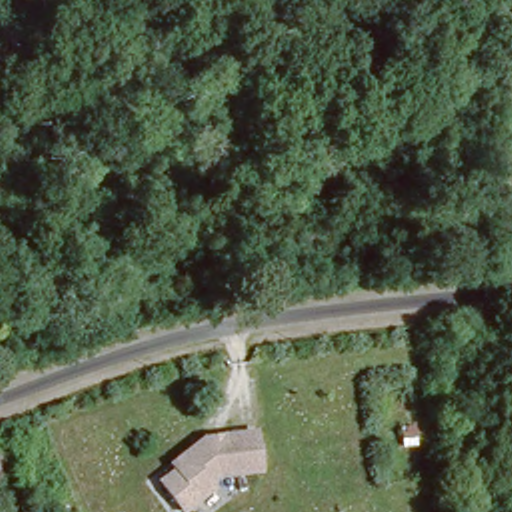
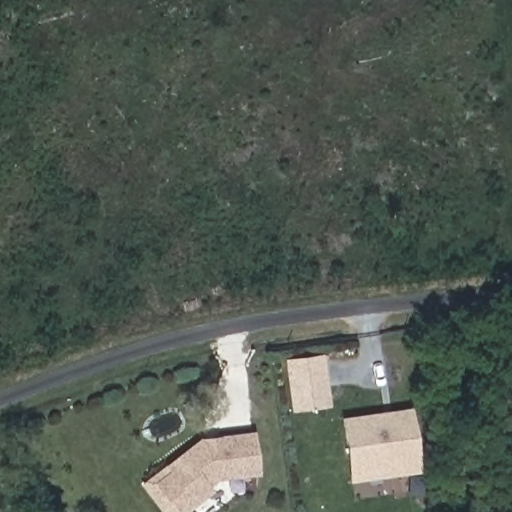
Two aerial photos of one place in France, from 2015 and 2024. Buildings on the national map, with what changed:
new [(323,359),(329,406),(297,410),(290,363),(323,359)]
new [(411,406),(417,473),(348,482),(340,416),(411,406)]
unchanged [(166,458),(202,436),(254,436),(254,475),(212,475),(201,482),(204,487),(171,507),(152,475),(170,464),(166,458)]

